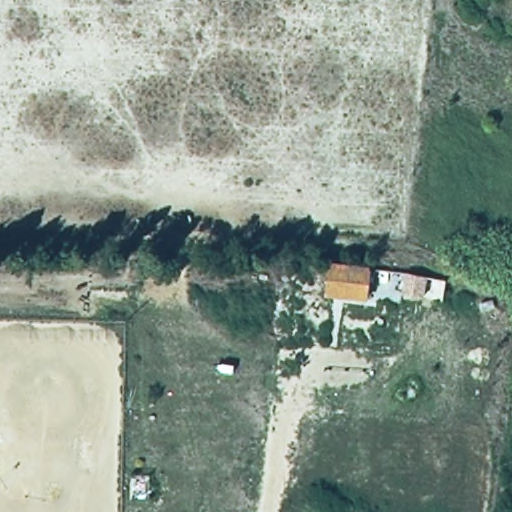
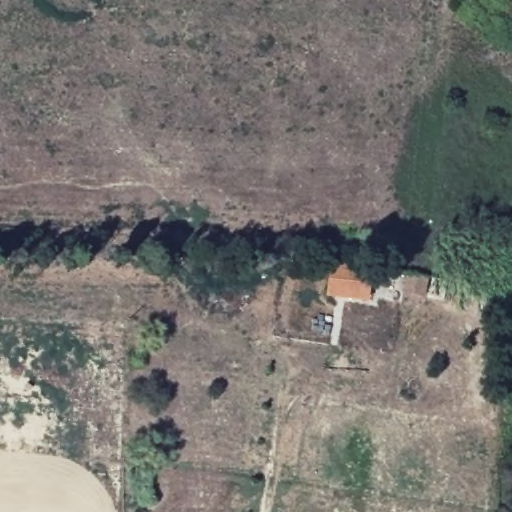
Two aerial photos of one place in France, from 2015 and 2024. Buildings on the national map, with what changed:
unchanged [(367,299),(325,296),(327,263),(370,267),(367,299)]

